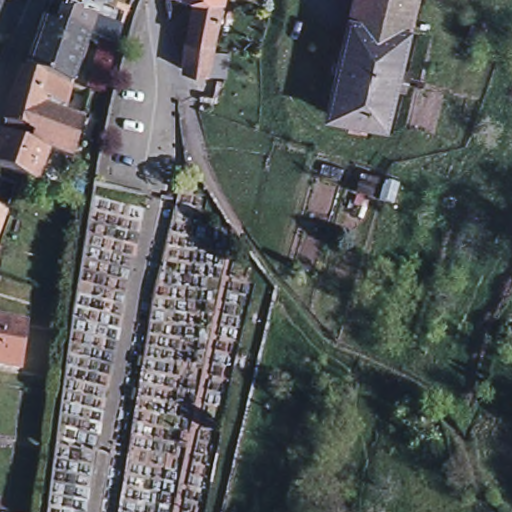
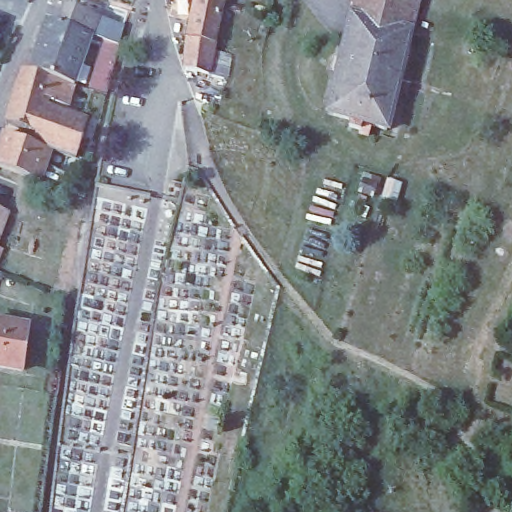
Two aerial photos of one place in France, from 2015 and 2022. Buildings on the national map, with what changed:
unchanged [(205,1),(200,0),(234,0),(232,6),(205,1)]
unchanged [(351,12),(354,0),(417,0),(410,27),(351,12)]
unchanged [(236,84),(220,80),(217,80),(194,75),(196,42),(205,1),(232,6),(222,56),(225,57),(241,60),(236,84)]
unchanged [(54,100),(52,107),(44,133),(41,132),(11,124),(27,69),(36,72),(52,21),(66,25),(71,8),(101,17),(95,35),(79,85),(72,106),(54,100)]
unchanged [(359,128),(360,124),(349,121),(350,115),(327,109),(351,12),(410,27),(385,125),(370,120),(367,131),(359,128)]
unchanged [(121,54),(111,95),(97,91),(106,50),(121,54)]
unchanged [(44,133),(52,107),(92,119),(80,157),(55,149),(39,143),(41,132),(44,133)]
unchanged [(55,149),(45,182),(0,165),(0,159),(9,133),(39,143),(55,149)]
unchanged [(0,224),(0,209),(5,211),(0,224)]
unchanged [(16,369),(0,367),(0,324),(21,327),(16,369)]

